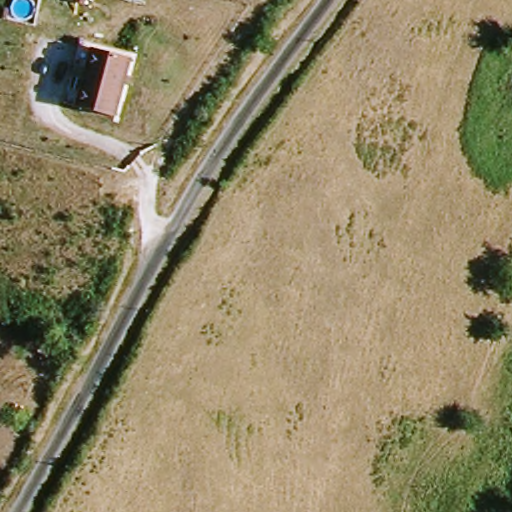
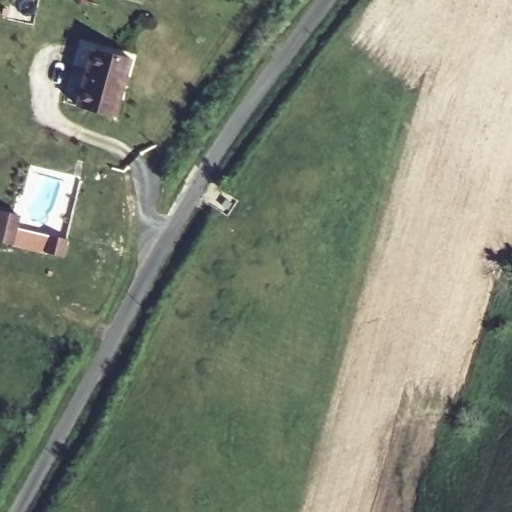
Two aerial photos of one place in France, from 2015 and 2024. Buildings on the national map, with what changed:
unchanged [(112,116),(75,106),(90,49),(127,59),(112,116)]
new [(67,239),(64,255),(0,242),(0,211),(20,216),(18,229),(67,239)]

